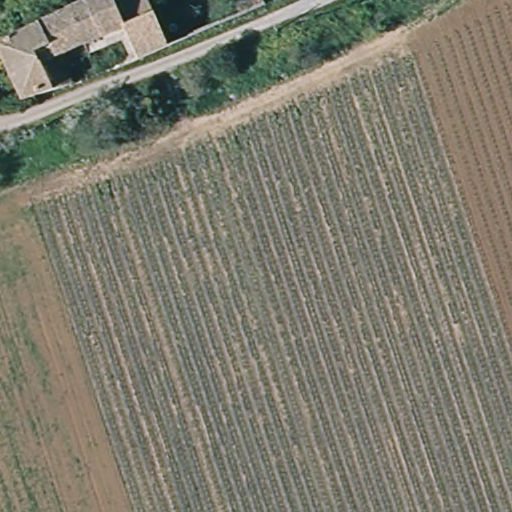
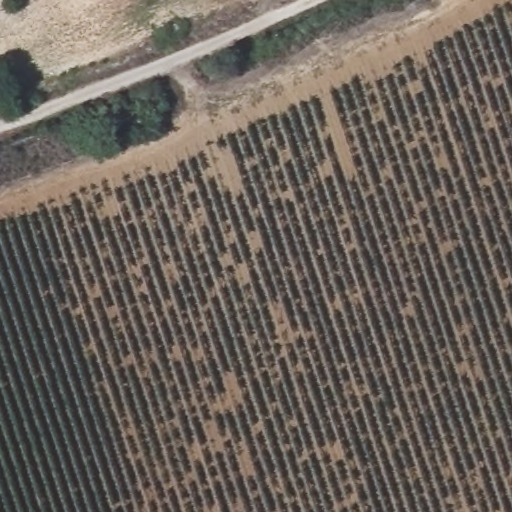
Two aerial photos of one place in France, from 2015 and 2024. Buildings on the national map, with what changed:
demolished [(34,68),(22,38),(105,0),(144,0),(168,47),(93,78),(82,51),(62,60),(72,86),(22,106),(12,78),(34,68)]
unchanged [(133,131),(111,141),(104,126),(127,117),(133,131)]

